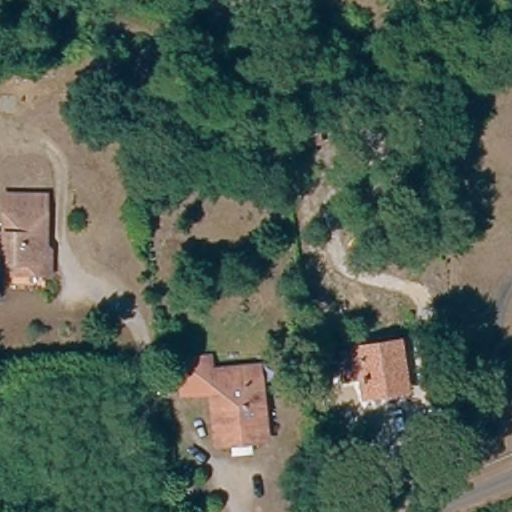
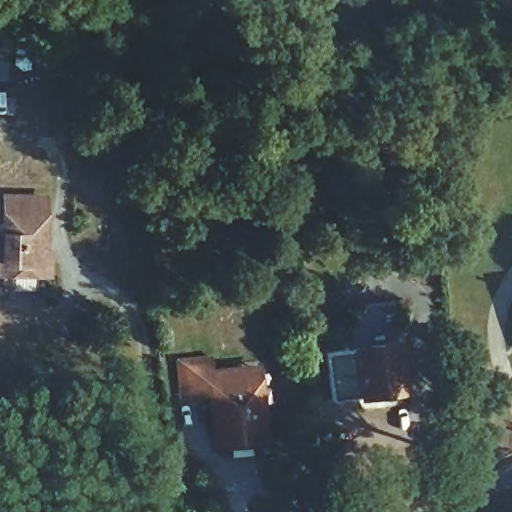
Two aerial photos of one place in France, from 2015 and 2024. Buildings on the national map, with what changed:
unchanged [(11,78),(0,78),(0,61),(12,61),(11,78)]
unchanged [(15,276),(0,276),(0,238),(15,237),(15,196),(55,197),(56,259),(61,260),(60,277),(15,276)]
unchanged [(405,344),(412,388),(372,394),(369,379),(350,382),(345,352),(405,344)]
unchanged [(270,444),(218,451),(213,398),(189,400),(186,369),(212,367),(214,383),(262,377),(270,444)]

